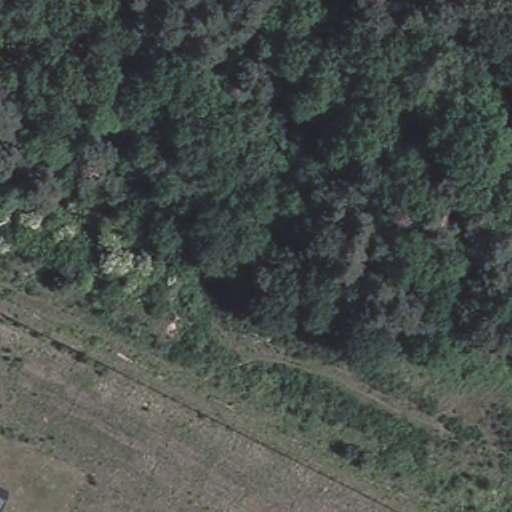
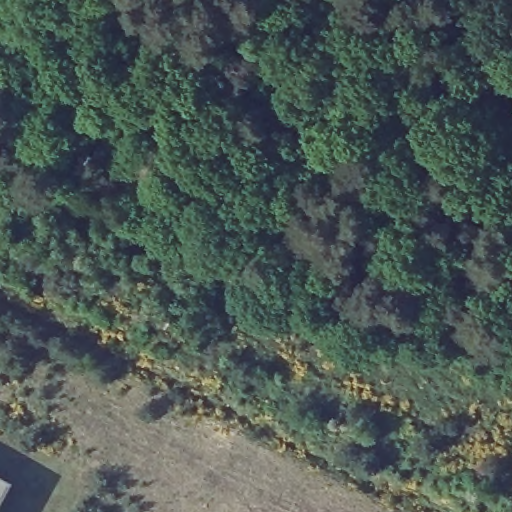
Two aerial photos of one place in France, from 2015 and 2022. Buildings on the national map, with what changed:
unchanged [(9,488),(0,504),(0,483),(9,488)]

